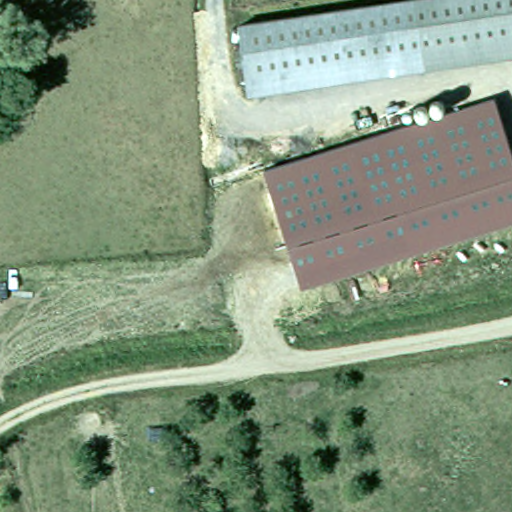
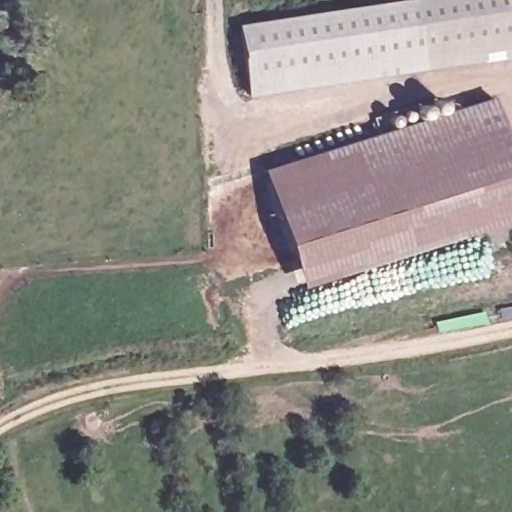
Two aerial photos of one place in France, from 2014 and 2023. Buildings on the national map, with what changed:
unchanged [(243,32),(409,0),(512,0),(512,52),(255,100),(243,32)]
unchanged [(401,110),(443,97),(447,109),(492,96),(512,157),(512,218),(301,286),(264,168),(404,124),(401,110)]

